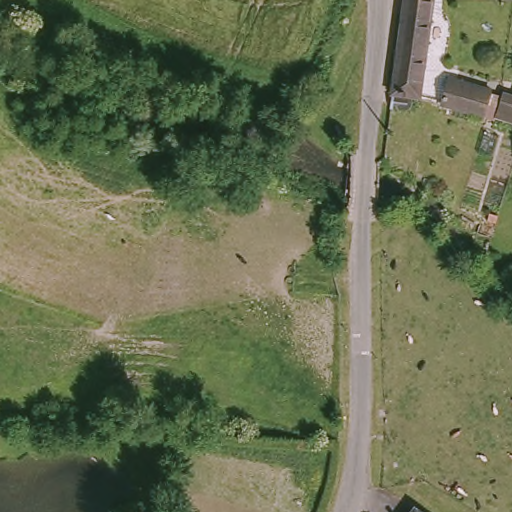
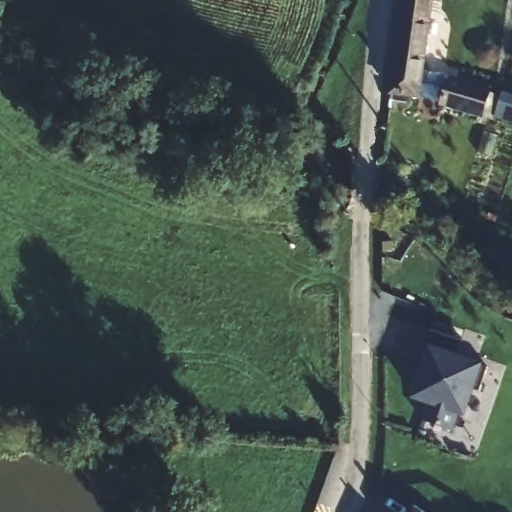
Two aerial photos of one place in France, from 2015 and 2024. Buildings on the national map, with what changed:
unchanged [(401,0),(428,0),(420,89),(392,87),(401,0)]
unchanged [(492,87),(491,93),(501,96),(502,90),(512,93),(512,124),(484,115),(483,119),(439,104),(450,75),(492,87)]
new [(474,389),(466,417),(459,415),(454,430),(421,419),(427,403),(411,397),(429,342),(433,330),(463,340),(460,352),(484,361),(482,367),(488,369),(480,391),(474,389)]
new [(415,503),(426,512),(408,512),(415,503)]
demolished [(437,512),(419,512),(429,503),(437,512)]

